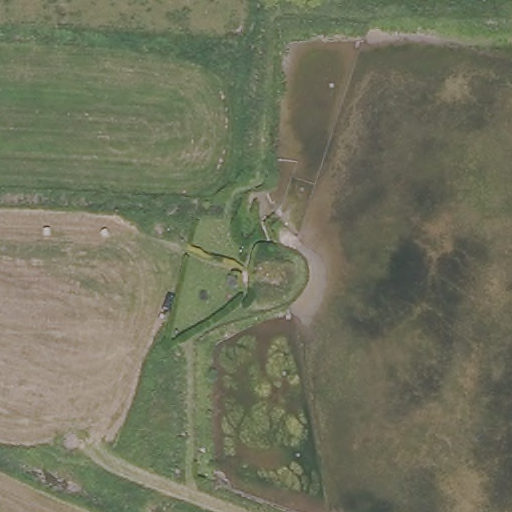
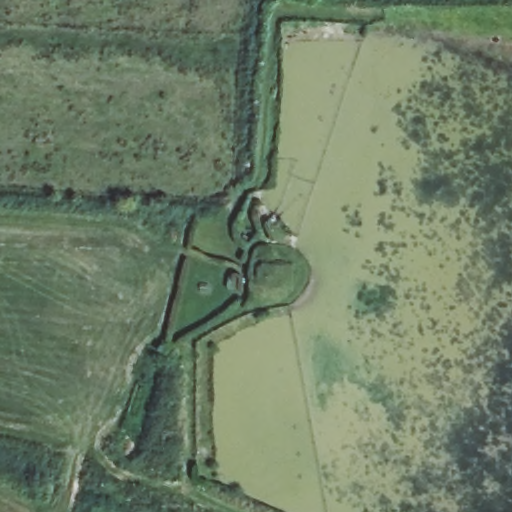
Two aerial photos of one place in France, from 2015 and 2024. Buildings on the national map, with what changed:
unchanged [(254,280),(257,261),(295,267),(290,284),(254,280)]

